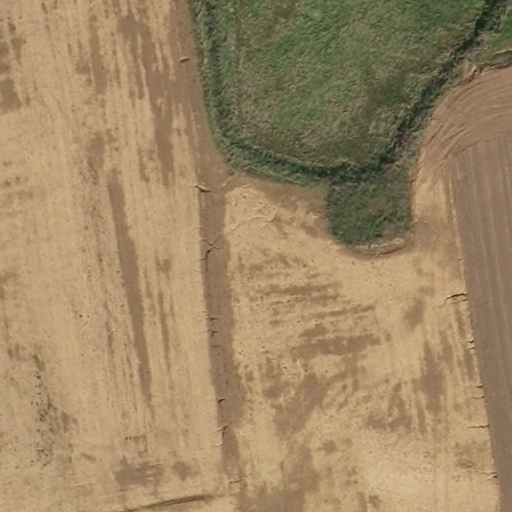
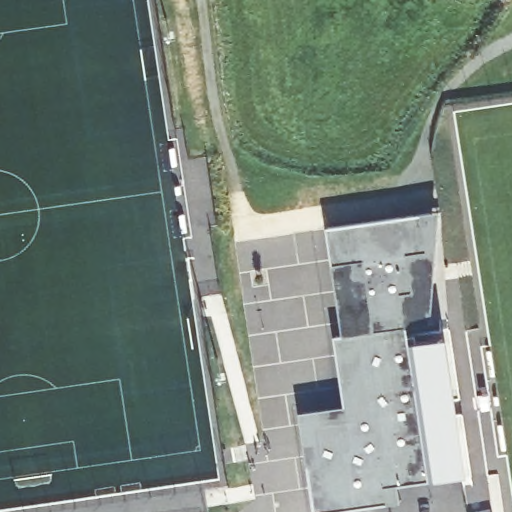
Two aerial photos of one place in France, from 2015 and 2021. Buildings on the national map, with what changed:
new [(415,291),(410,254),(430,251),(424,212),(442,210),(432,323),(408,327),(403,293),(415,291)]
new [(389,505),(337,512),(316,512),(308,466),(322,463),(317,425),(348,420),(346,407),(336,337),(344,335),(374,329),(367,273),(354,275),(352,261),(342,262),(336,225),(424,212),(430,251),(410,254),(415,291),(403,293),(408,327),(411,343),(452,337),(471,475),(435,481),(398,486),(401,502),(389,505)]
new [(336,225),(342,262),(352,261),(354,275),(367,273),(374,329),(344,335),(333,263),(328,226),(336,225)]
new [(346,407),(348,420),(317,425),(322,463),(308,466),(301,413),(346,407)]

